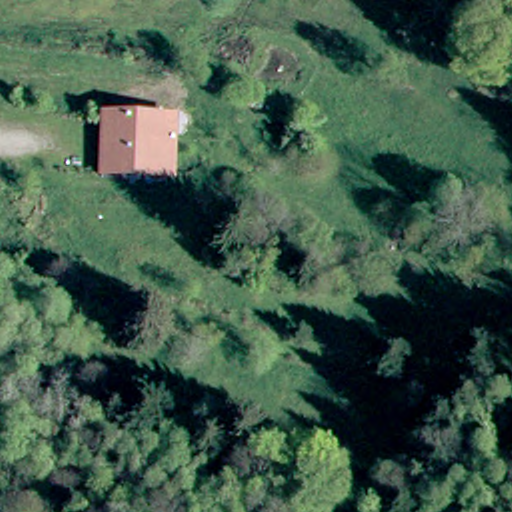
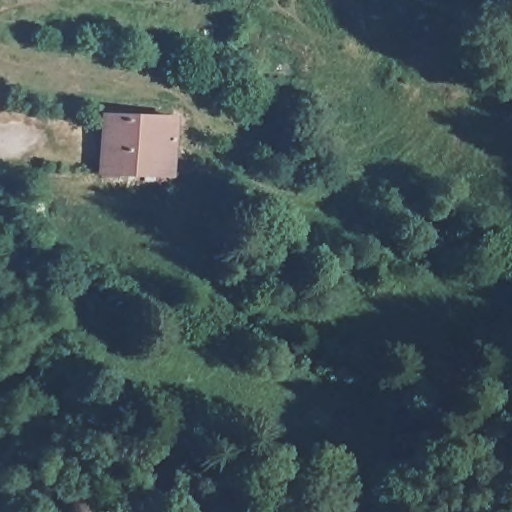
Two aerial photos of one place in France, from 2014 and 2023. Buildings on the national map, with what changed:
unchanged [(106,175),(108,143),(108,120),(110,120),(176,121),(175,177),(106,175)]

